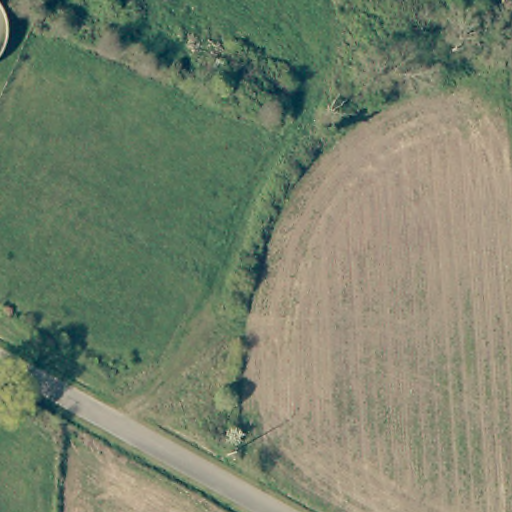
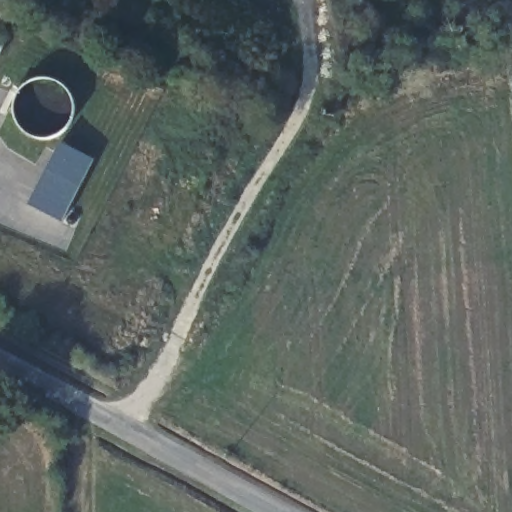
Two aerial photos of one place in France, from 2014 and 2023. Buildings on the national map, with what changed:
new [(63,221),(29,204),(61,142),(94,159),(63,221)]

